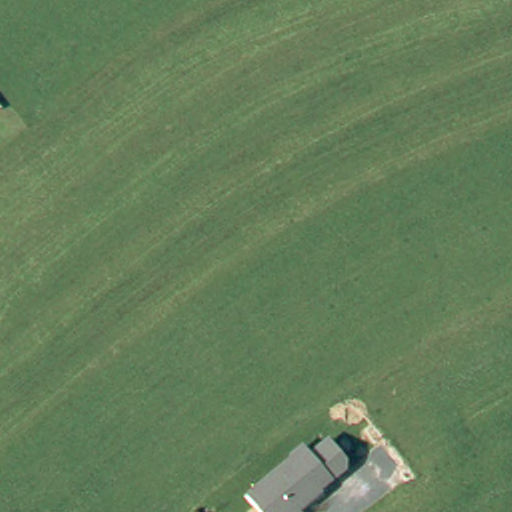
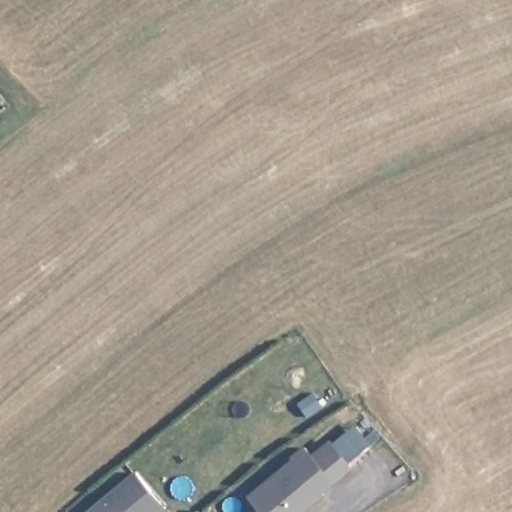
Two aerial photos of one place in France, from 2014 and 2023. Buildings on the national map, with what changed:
unchanged [(292,459),(291,457),(305,446),(336,482),(306,512),(261,512),(248,496),(292,459)]
new [(136,471),(168,509),(163,512),(85,512),(136,471)]

